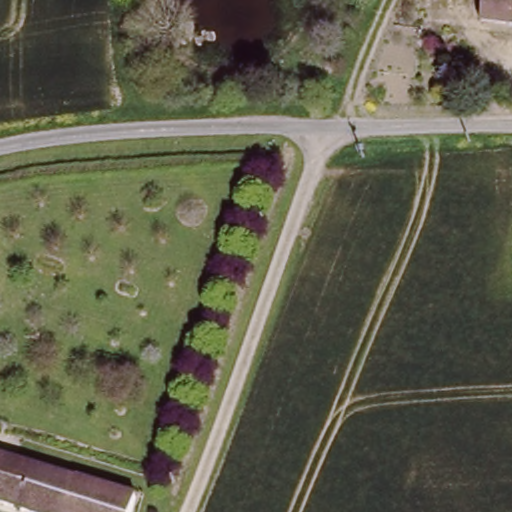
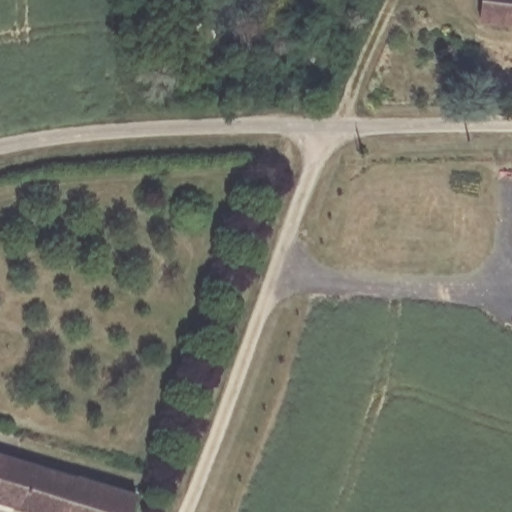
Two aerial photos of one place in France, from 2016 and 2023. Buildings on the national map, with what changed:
unchanged [(478,20),(466,16),(468,0),(512,0),(512,24),(478,20)]
unchanged [(132,512),(20,512),(0,506),(0,458),(137,497),(132,512)]

